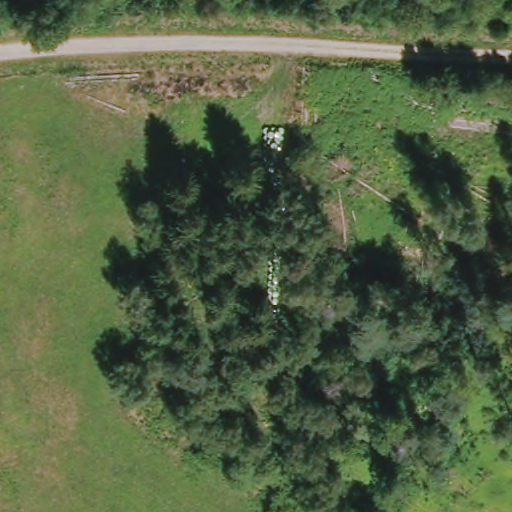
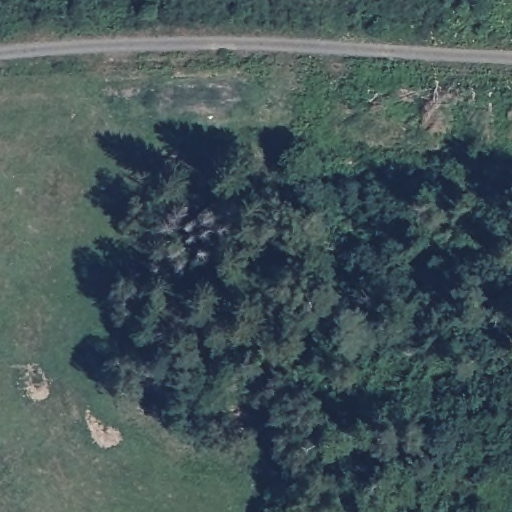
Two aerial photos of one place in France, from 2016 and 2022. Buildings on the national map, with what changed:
[]

